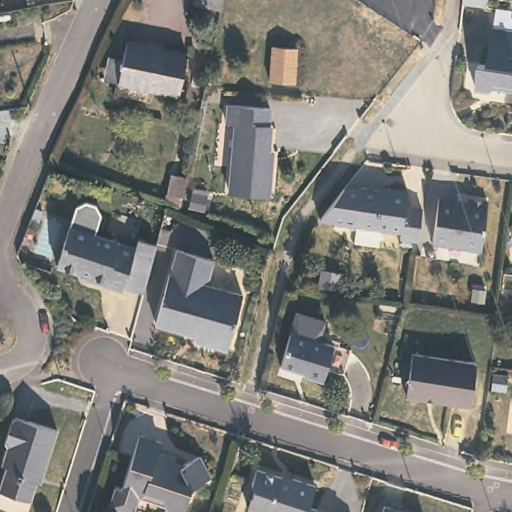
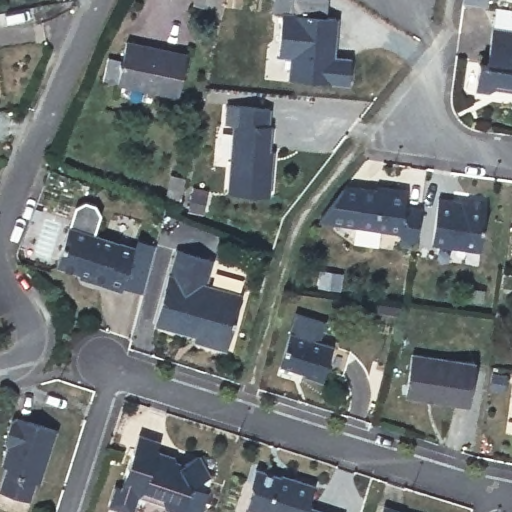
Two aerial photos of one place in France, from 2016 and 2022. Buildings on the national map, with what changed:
unchanged [(214,15),(190,8),(192,0),(218,0),(214,15)]
new [(327,17),(338,18),(335,56),(351,57),(349,84),(288,78),(291,57),(278,56),(283,14),(273,13),(274,0),(329,0),(327,17)]
unchanged [(481,8),(456,5),(457,0),(482,0),(481,8)]
unchanged [(485,94),(485,97),(471,95),(475,68),(482,69),(487,34),(512,36),(512,97),(485,94)]
unchanged [(186,55),(177,96),(117,83),(126,42),(186,55)]
demolished [(296,49),(295,84),(268,83),(270,48),(296,49)]
unchanged [(267,109),(267,127),(270,127),(270,163),(273,163),(273,198),(234,198),(234,130),(225,130),(225,109),(267,109)]
unchanged [(186,184),(182,203),(168,200),(172,182),(186,184)]
unchanged [(388,194),(407,196),(406,211),(422,213),(418,246),(401,244),(401,237),(356,232),(361,194),(388,197),(388,194)]
unchanged [(488,207),(482,254),(433,247),(438,204),(456,207),(466,208),(467,204),(488,207)]
unchanged [(103,286),(72,276),(69,270),(39,260),(52,221),(117,244),(104,283),(103,286)]
unchanged [(140,237),(125,290),(104,283),(117,244),(122,231),(140,237)]
unchanged [(190,332),(150,320),(163,272),(166,273),(174,249),(208,259),(201,283),(239,295),(222,349),(201,343),(188,339),(190,332)]
unchanged [(340,295),(318,292),(320,282),(321,276),(342,279),(340,290),(340,295)]
unchanged [(321,386),(302,381),(303,379),(280,371),(290,338),(295,319),(324,327),(318,346),(331,350),(321,386)]
unchanged [(472,364),(466,407),(403,398),(410,354),(416,355),(472,364)]
unchanged [(59,429),(42,476),(39,475),(30,500),(0,489),(8,466),(6,461),(10,447),(9,442),(16,417),(20,416),(59,429)]
unchanged [(109,503),(115,485),(120,487),(139,433),(160,440),(157,450),(177,457),(176,461),(183,463),(197,455),(207,474),(187,486),(180,510),(165,505),(161,494),(146,489),(137,493),(130,511),(109,503)]
unchanged [(307,504),(332,512),(272,512),(247,504),(252,488),(250,481),(254,468),(290,480),(291,477),(313,484),(307,504)]
unchanged [(397,512),(384,512),(385,509),(397,512)]

